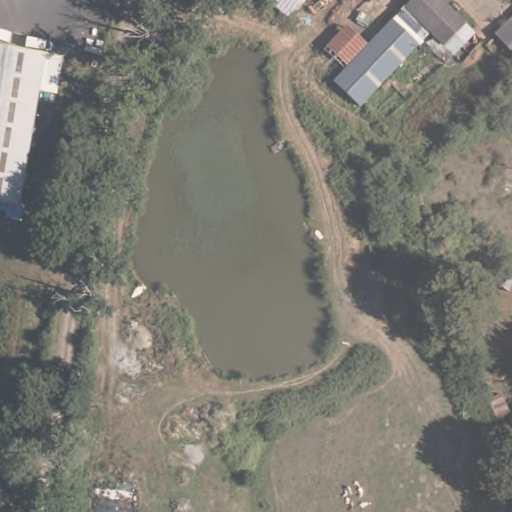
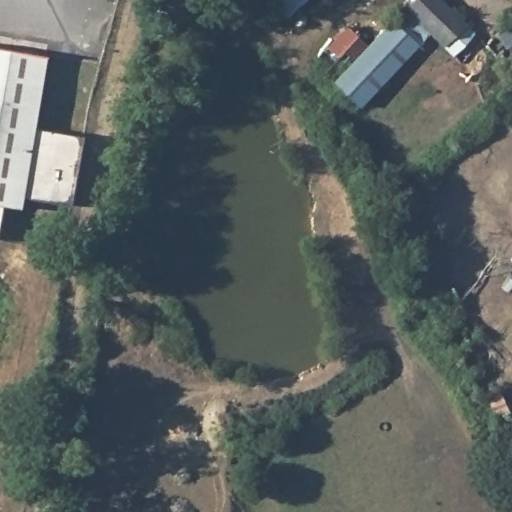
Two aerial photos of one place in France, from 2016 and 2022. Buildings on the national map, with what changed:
unchanged [(256,0),(310,0),(285,22),(256,0)]
unchanged [(460,62),(407,8),(415,0),(441,0),(484,42),(460,62)]
unchanged [(355,108),(333,86),(332,85),(367,49),(393,21),(417,46),(355,108)]
unchanged [(345,27),(367,49),(332,85),(309,64),(345,27)]
unchanged [(512,27),(512,67),(493,46),(512,27)]
unchanged [(62,56),(56,94),(39,91),(21,206),(0,203),(0,47),(62,56)]
new [(33,128),(80,135),(71,204),(22,196),(33,128)]
new [(3,203),(0,218),(0,203),(3,203)]

